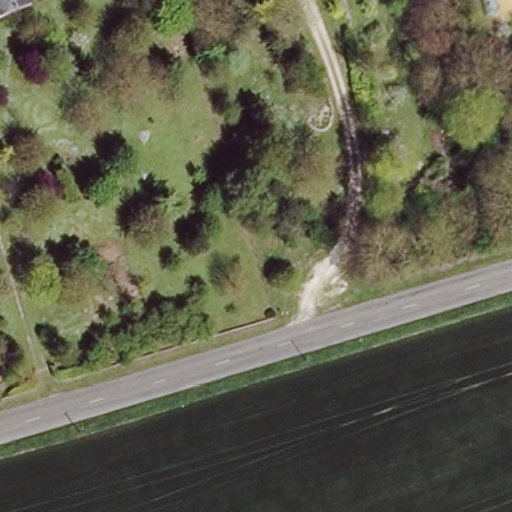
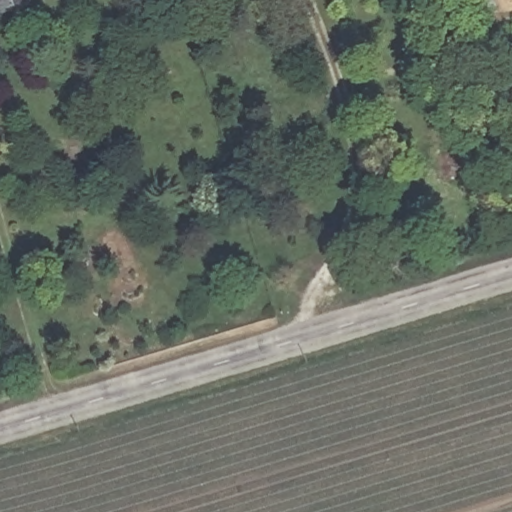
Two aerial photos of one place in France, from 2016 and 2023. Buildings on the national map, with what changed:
unchanged [(25,7),(0,18),(0,0),(24,0),(25,3),(25,7)]

